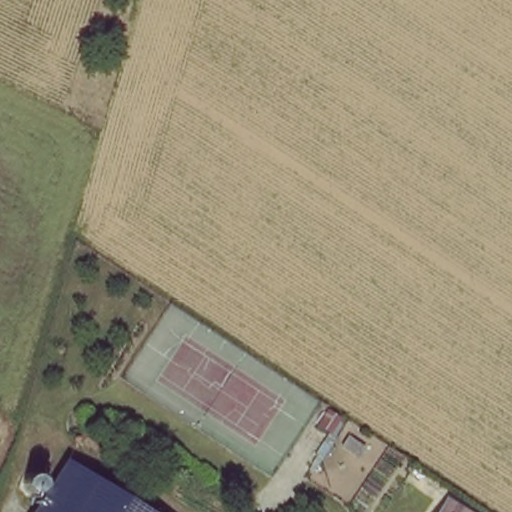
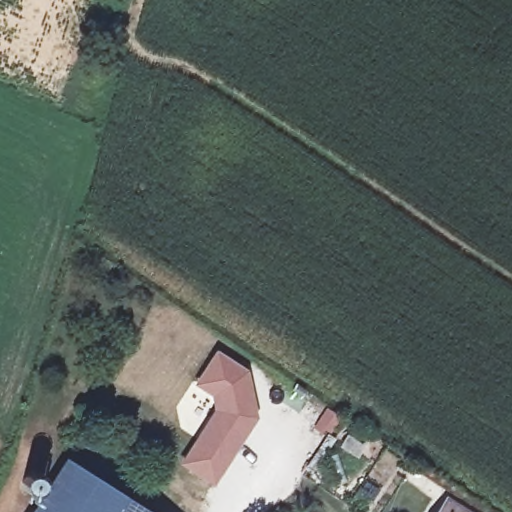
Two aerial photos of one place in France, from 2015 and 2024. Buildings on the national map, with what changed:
new [(211,412),(211,396),(193,384),(216,348),(248,369),(257,416),(211,484),(179,463),(211,412)]
unchanged [(351,452),(357,444),(369,453),(363,461),(351,452)]
unchanged [(32,512),(43,495),(58,505),(78,473),(138,512),(32,512)]
unchanged [(461,512),(445,512),(450,505),(461,512)]

